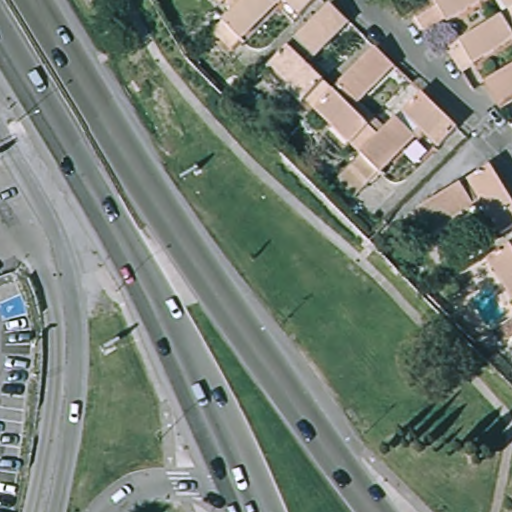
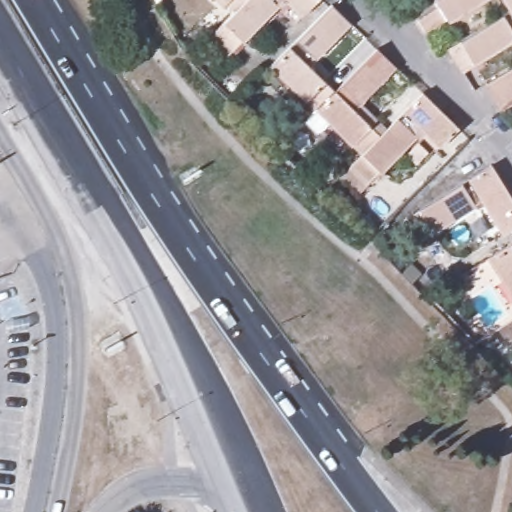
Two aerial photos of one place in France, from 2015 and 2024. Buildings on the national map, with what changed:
unchanged [(242,0),(276,0),(275,1),(277,4),(233,46),(216,28),(233,10),(242,0)]
unchanged [(242,0),(233,10),(223,0),(242,0)]
unchanged [(350,21),(316,54),(314,53),(307,60),(334,87),(314,107),(312,110),(302,100),(305,96),(271,61),(330,0),(350,21)]
unchanged [(289,0),(313,0),(301,13),(289,0)]
unchanged [(432,0),(490,0),(446,27),(443,22),(420,36),(407,16),(432,0)]
unchanged [(497,0),(512,0),(512,11),(506,15),(497,0)]
unchanged [(443,52),(506,15),(512,11),(512,41),(457,74),(443,52)]
unchanged [(363,100),(360,98),(354,105),(379,132),(359,151),(314,107),(334,87),(375,45),(397,66),(363,100)]
unchanged [(481,85),(512,66),(512,100),(497,110),(481,85)]
unchanged [(434,141),(418,124),(410,132),(414,136),(354,195),(335,175),(349,161),(359,151),(379,132),(421,91),(453,123),(434,141)]
unchanged [(500,236),(481,202),(472,206),(475,212),(417,243),(403,219),(407,215),(489,165),(512,203),(512,228),(500,236)]
unchanged [(512,239),(512,311),(481,258),(512,239)]

